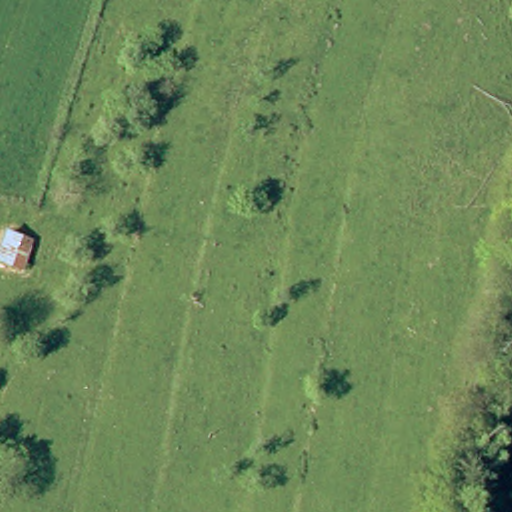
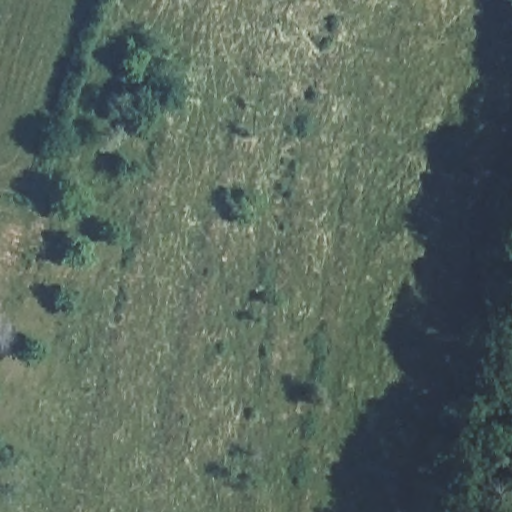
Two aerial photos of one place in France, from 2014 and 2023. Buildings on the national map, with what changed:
unchanged [(15,238),(31,244),(22,272),(5,266),(15,238)]

